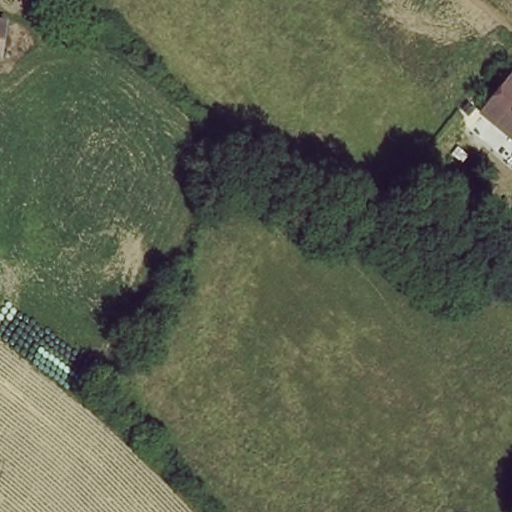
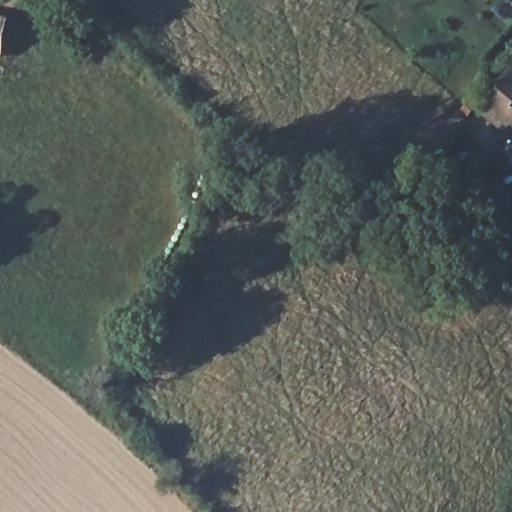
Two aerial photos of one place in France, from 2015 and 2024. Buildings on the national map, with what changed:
unchanged [(9,26),(5,59),(0,58),(0,25),(9,26)]
unchanged [(512,80),(512,141),(482,114),(512,80)]

